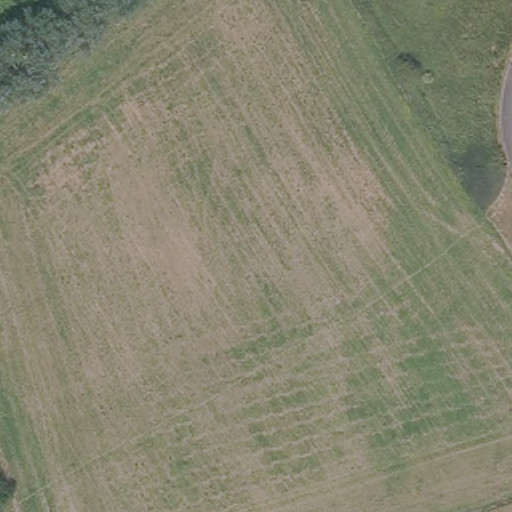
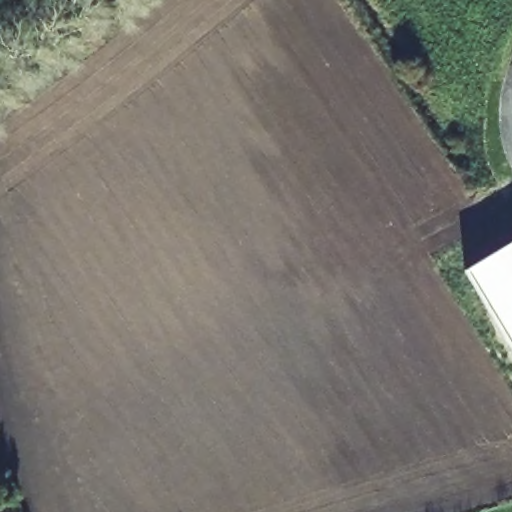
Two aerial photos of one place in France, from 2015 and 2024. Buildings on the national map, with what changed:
new [(465,270),(512,242),(512,348),(465,270)]

